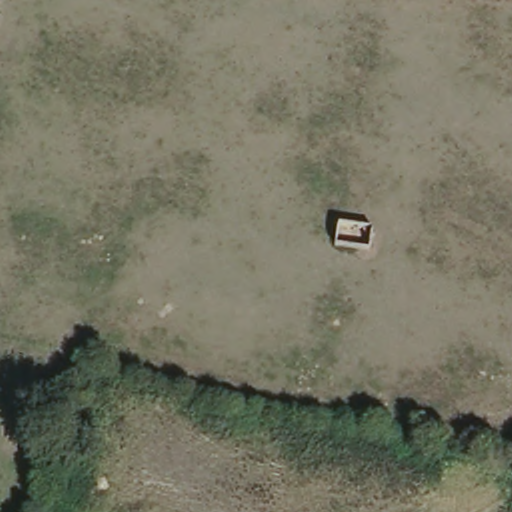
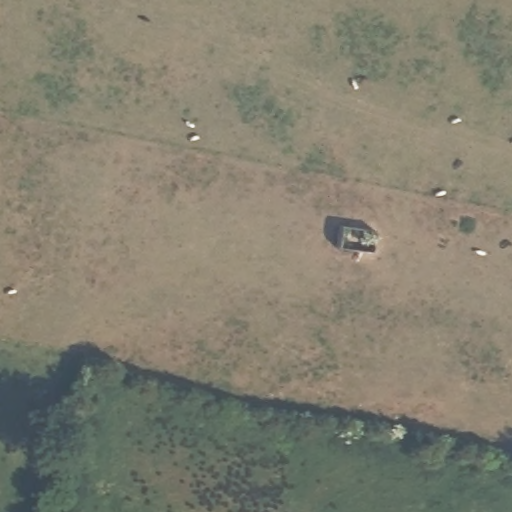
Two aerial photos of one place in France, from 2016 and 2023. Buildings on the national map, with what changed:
unchanged [(475,512),(448,512),(451,503),(476,510),(475,512)]

